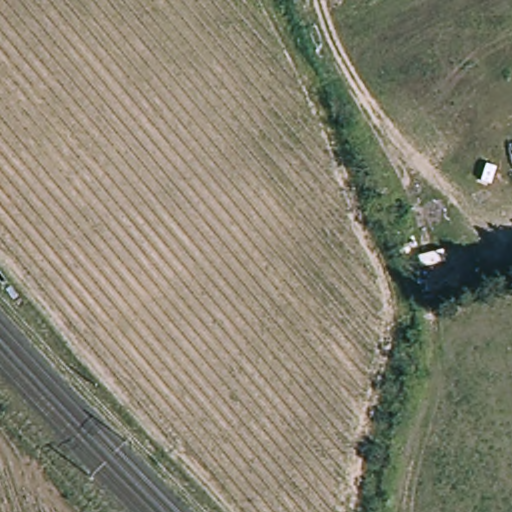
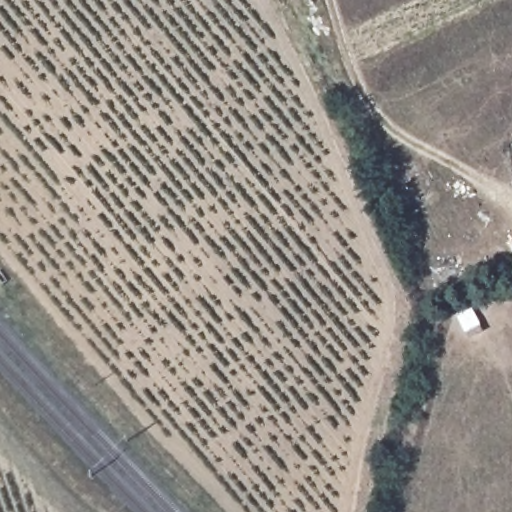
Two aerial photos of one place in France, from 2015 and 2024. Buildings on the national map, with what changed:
unchanged [(0,292),(0,282),(4,289),(0,292)]

